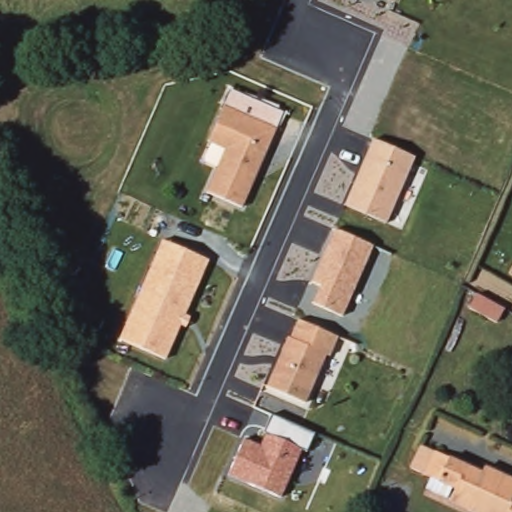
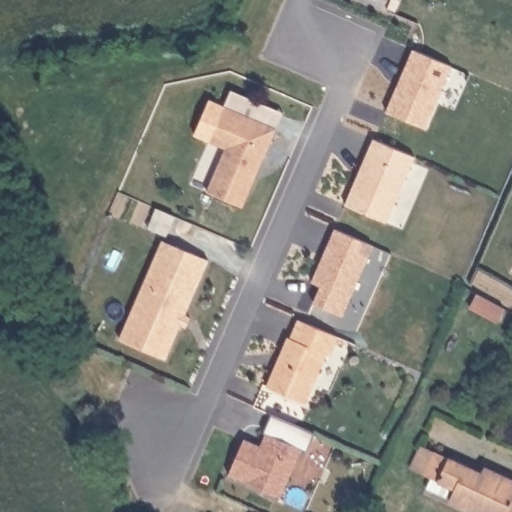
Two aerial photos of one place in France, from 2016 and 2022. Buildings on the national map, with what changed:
new [(451,66),(423,128),(385,113),(412,50),(451,66)]
unchanged [(207,191),(218,166),(199,158),(207,141),(224,101),(231,86),(287,110),(277,125),(243,206),(207,191)]
unchanged [(416,154),(386,220),(343,202),(373,136),(416,154)]
unchanged [(374,245),(342,315),(313,302),(321,283),(310,280),(333,228),(374,245)]
unchanged [(209,258),(185,313),(191,316),(187,325),(181,323),(164,357),(118,334),(163,238),(209,258)]
unchanged [(469,297),(478,301),(481,302),(496,310),(489,324),(462,311),(469,297)]
unchanged [(340,334),(329,356),(325,354),(303,404),(263,387),(294,315),(340,334)]
unchanged [(314,433),(307,451),(301,450),(281,498),(228,477),(244,439),(259,445),(272,416),(314,433)]
unchanged [(420,446),(482,474),(484,468),(512,481),(512,512),(472,512),(449,501),(454,489),(451,487),(446,497),(424,488),(430,477),(410,467),(420,446)]

